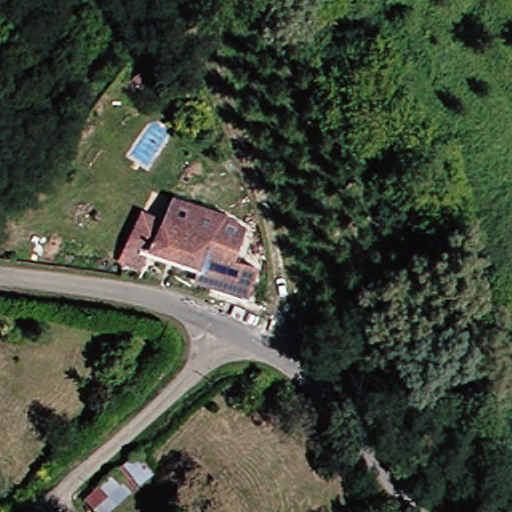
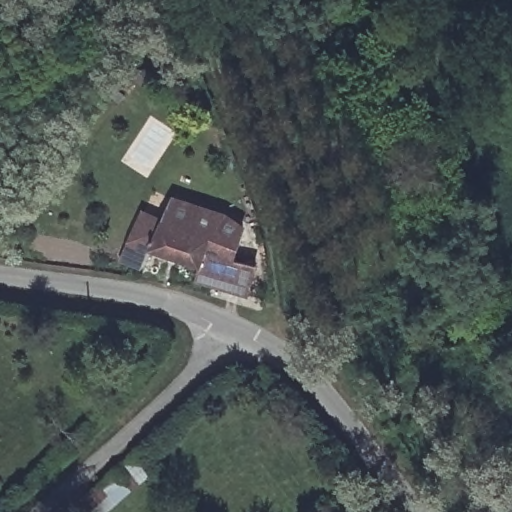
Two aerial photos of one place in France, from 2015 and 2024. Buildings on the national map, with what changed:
unchanged [(138,217),(151,223),(154,215),(161,218),(168,203),(219,219),(236,232),(226,262),(250,270),(241,298),(190,284),(192,273),(144,255),(136,272),(116,262),(138,217)]
unchanged [(89,512),(78,500),(130,457),(148,476),(108,512),(89,512)]

